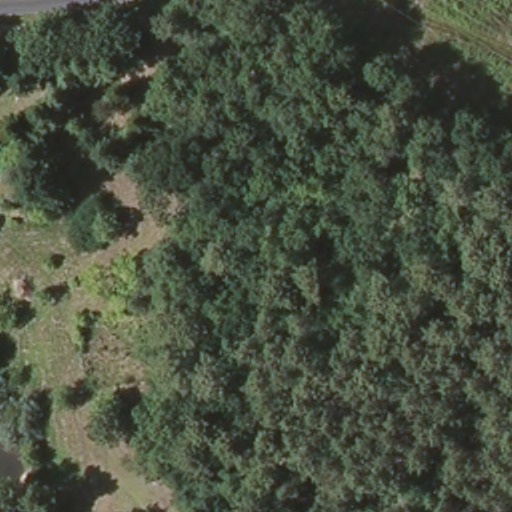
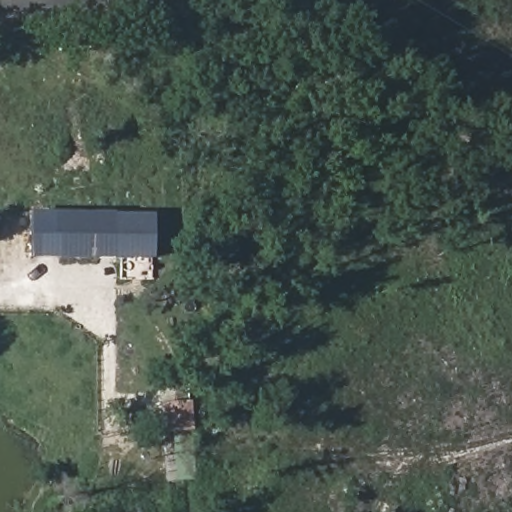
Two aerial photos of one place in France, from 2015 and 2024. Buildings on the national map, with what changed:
new [(152,213),(151,259),(30,258),(31,212),(152,213)]

